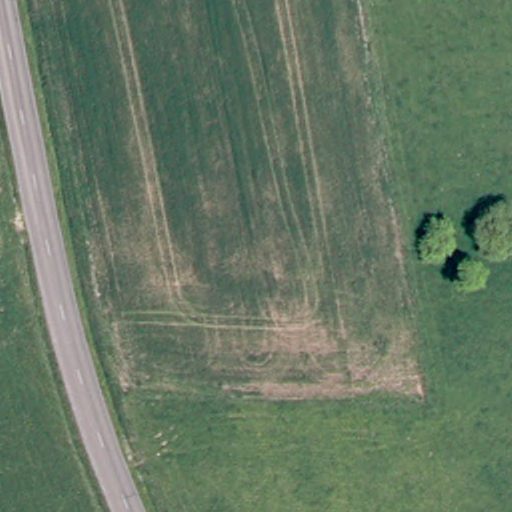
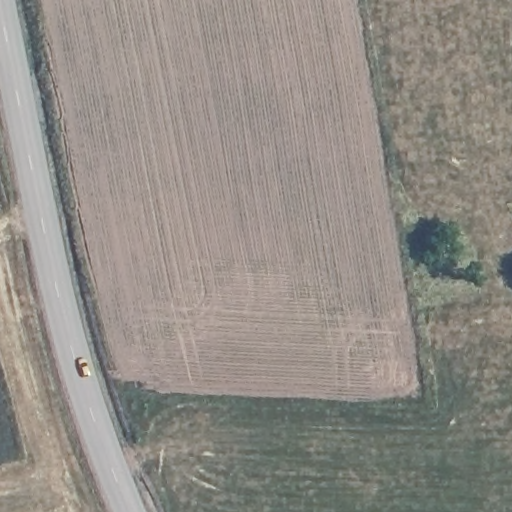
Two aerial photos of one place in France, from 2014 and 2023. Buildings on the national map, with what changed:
[]

